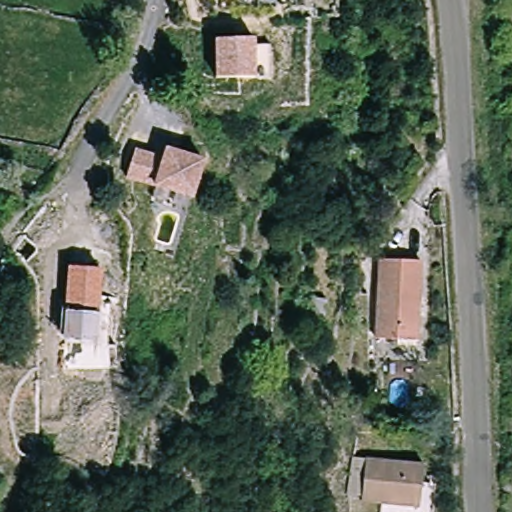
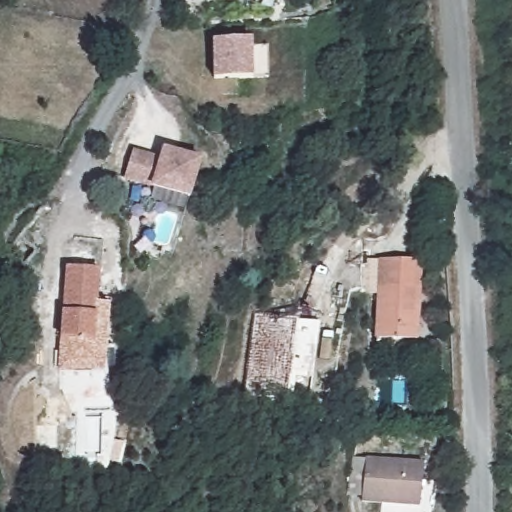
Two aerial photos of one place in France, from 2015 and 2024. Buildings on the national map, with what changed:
unchanged [(272,70),(271,75),(217,77),(215,39),(254,37),(255,44),(271,44),(272,70)]
unchanged [(188,197),(123,177),(132,150),(159,159),(162,150),(199,161),(188,197)]
unchanged [(405,332),(381,331),(385,254),(426,255),(423,324),(423,333),(405,332)]
unchanged [(101,270),(97,342),(57,339),(59,309),(63,310),(66,266),(101,270)]
unchanged [(359,500),(362,457),(380,459),(437,463),(435,505),(377,500),(359,500)]

